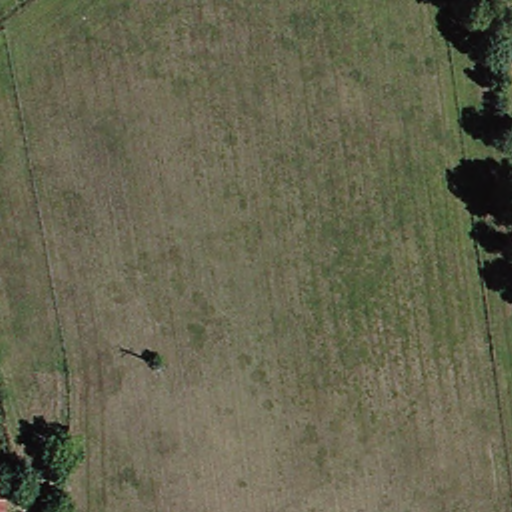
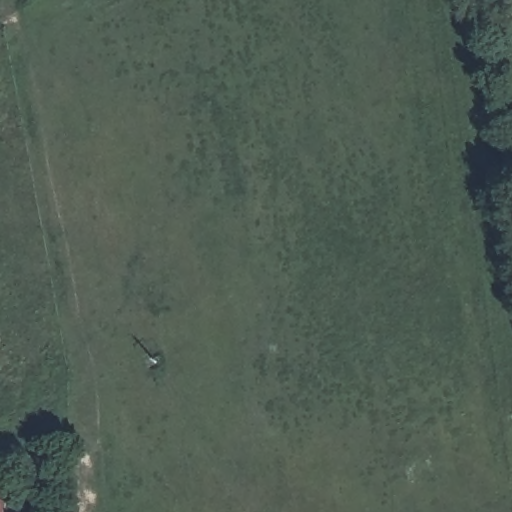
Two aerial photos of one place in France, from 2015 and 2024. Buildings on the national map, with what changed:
unchanged [(5,512),(0,512),(0,498),(6,498),(5,512)]

